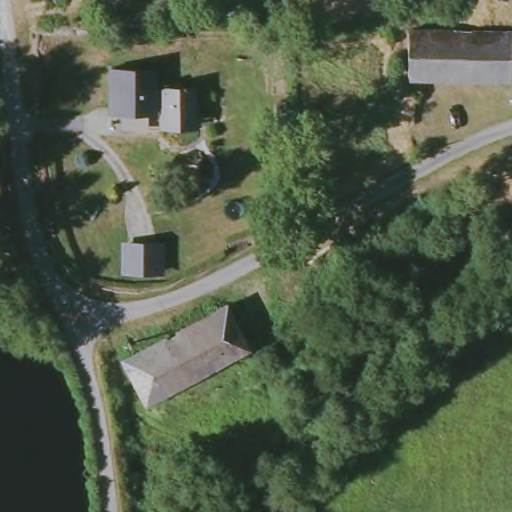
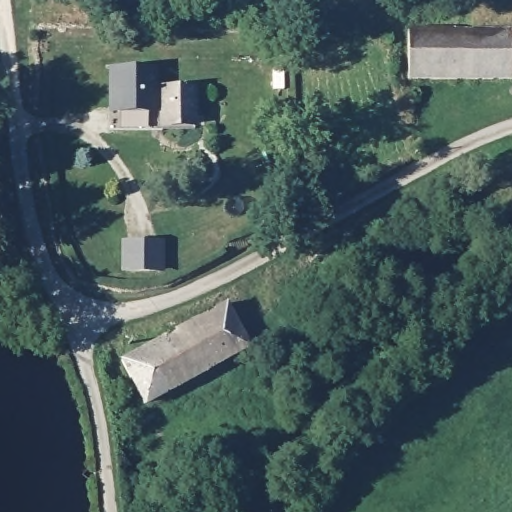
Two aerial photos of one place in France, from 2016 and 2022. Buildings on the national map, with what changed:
unchanged [(409,83),(411,29),(459,31),(508,31),(509,39),(512,40),(512,81),(409,83)]
unchanged [(113,115),(112,69),(158,69),(159,115),(113,115)]
unchanged [(163,130),(163,87),(199,87),(199,129),(163,130)]
unchanged [(123,274),(124,243),(166,244),(166,277),(123,274)]
unchanged [(246,342),(139,398),(115,356),(223,301),(246,342)]

